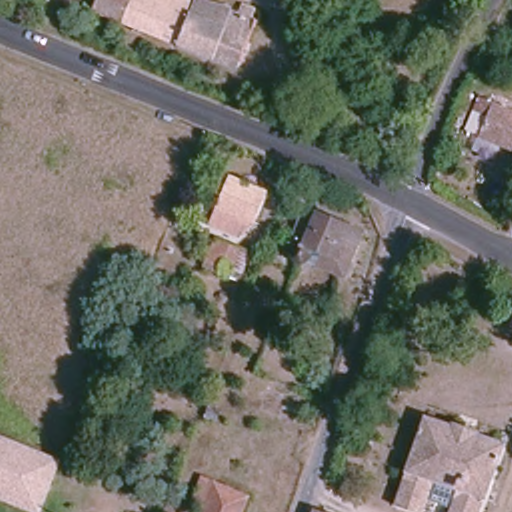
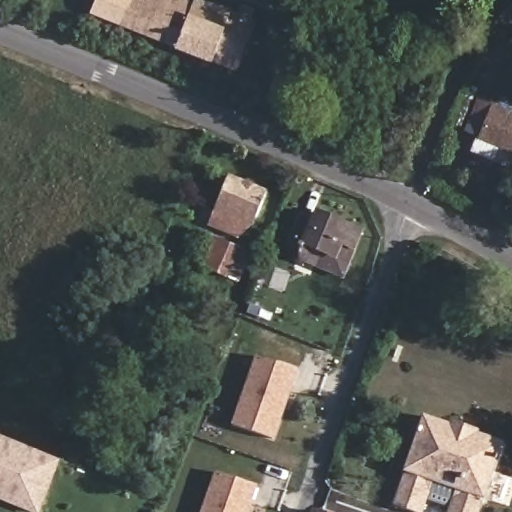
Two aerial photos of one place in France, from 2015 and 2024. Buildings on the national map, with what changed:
unchanged [(94,0),(200,0),(238,15),(243,6),(253,9),(248,21),(254,24),(234,67),(89,12),(94,0)]
unchanged [(469,133),(471,126),(464,122),(476,101),(482,103),(483,101),(512,115),(512,153),(469,133)]
unchanged [(215,210),(229,175),(264,192),(251,227),(215,210)]
unchanged [(366,242),(359,261),(348,257),(341,272),(327,265),(298,251),(307,229),(318,232),(324,222),(347,232),(366,242)]
unchanged [(219,275),(228,243),(252,251),(239,285),(219,275)]
new [(257,356),(299,371),(274,440),(233,425),(257,356)]
unchanged [(509,443),(483,512),(452,512),(457,498),(434,490),(425,510),(397,499),(431,413),(509,443)]
unchanged [(0,441),(0,433),(3,434),(0,441)]
unchanged [(0,502),(0,441),(3,434),(64,458),(43,512),(25,512),(0,502)]
unchanged [(246,512),(203,512),(204,506),(194,500),(202,477),(252,496),(246,512)]

